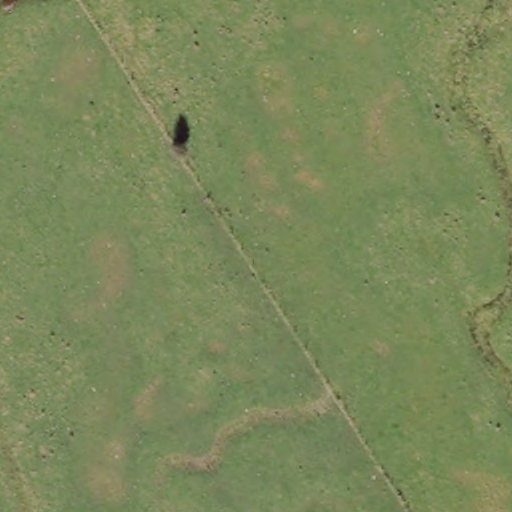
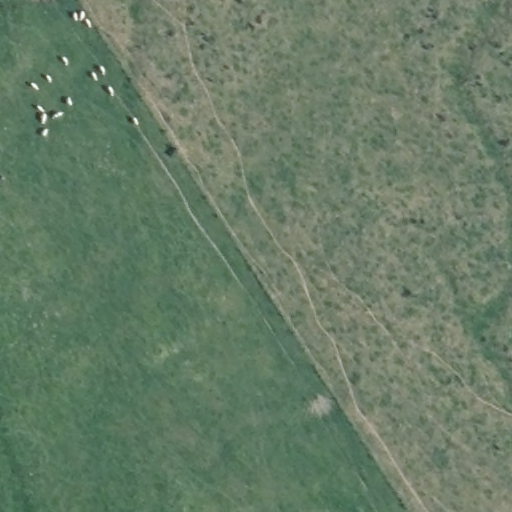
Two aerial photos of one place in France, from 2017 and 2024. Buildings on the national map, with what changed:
[]

